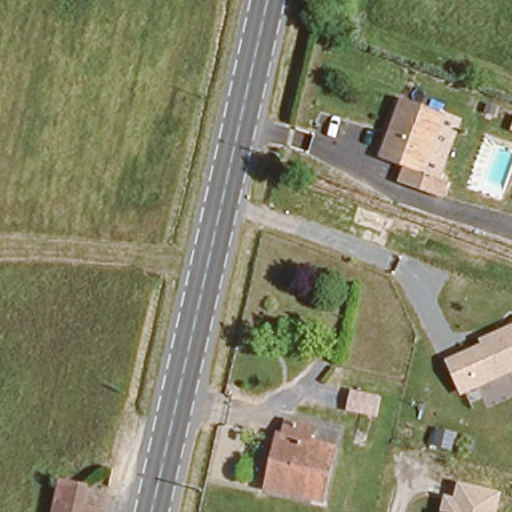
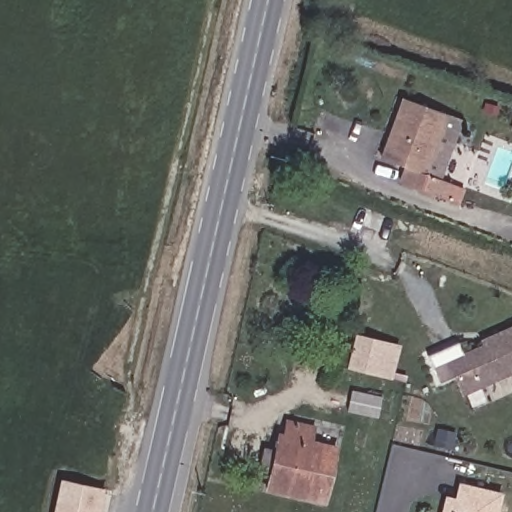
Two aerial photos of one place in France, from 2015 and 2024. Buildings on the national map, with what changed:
unchanged [(442,98),(418,155),(441,165),(433,184),(394,168),(402,149),(379,140),(403,81),(442,98)]
unchanged [(448,358),(482,344),(479,337),(512,323),(512,374),(464,395),(448,358)]
new [(392,381),(350,371),(359,335),(400,343),(392,381)]
unchanged [(378,419),(346,413),(351,389),(384,394),(378,419)]
unchanged [(273,434),(282,435),(286,417),(333,426),(317,496),(263,486),(273,434)]
unchanged [(56,474),(85,481),(81,499),(96,502),(94,512),(49,512),(56,474)]
unchanged [(444,495),(456,497),(459,483),(504,493),(499,512),(440,512),(444,495)]

